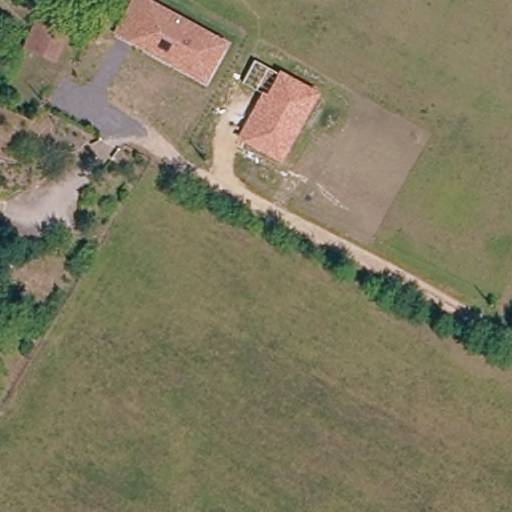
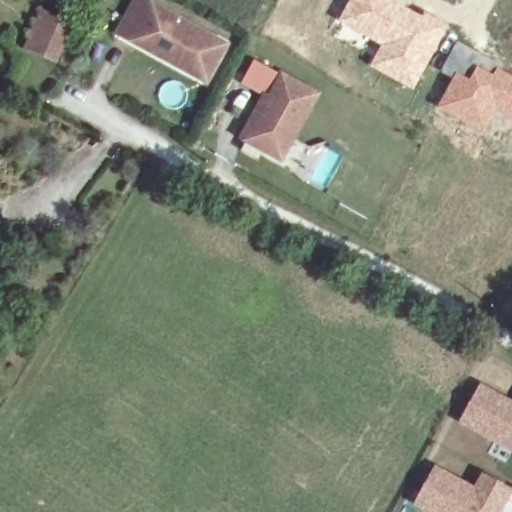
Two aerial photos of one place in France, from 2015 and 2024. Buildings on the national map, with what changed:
unchanged [(130,39),(116,31),(133,0),(145,0),(150,3),(223,44),(203,80),(130,39)]
new [(402,0),(405,2),(403,5),(380,45),(337,20),(349,0),(402,0)]
new [(380,45),(403,5),(449,24),(414,91),(368,67),(380,45)]
unchanged [(62,61),(27,49),(40,14),(78,27),(62,61)]
new [(457,41),(482,54),(477,62),(492,72),(497,65),(512,73),(512,119),(495,110),(483,134),(436,107),(453,77),(441,70),(457,41)]
unchanged [(238,141),(263,95),(269,97),(281,71),(321,93),(283,165),(238,141)]
new [(479,383),(512,400),(512,453),(457,423),(479,383)]
new [(433,464),(474,487),(482,473),(512,489),(512,491),(501,512),(423,512),(412,506),(433,464)]

